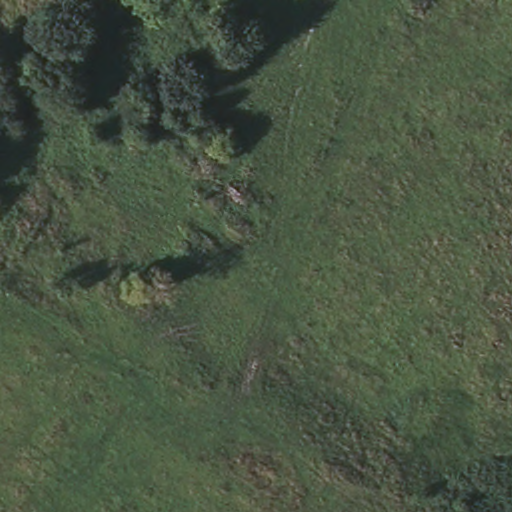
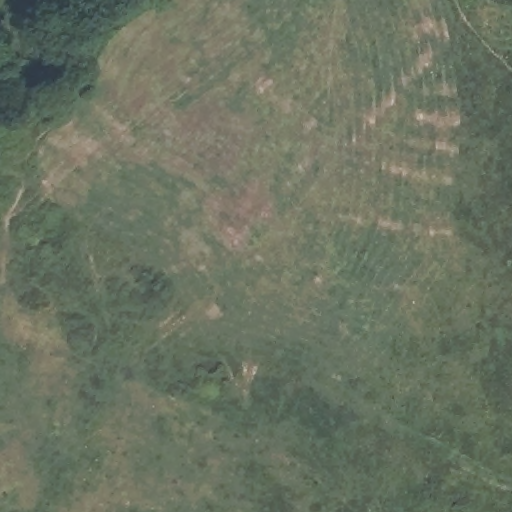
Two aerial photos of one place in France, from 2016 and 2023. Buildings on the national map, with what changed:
[]

